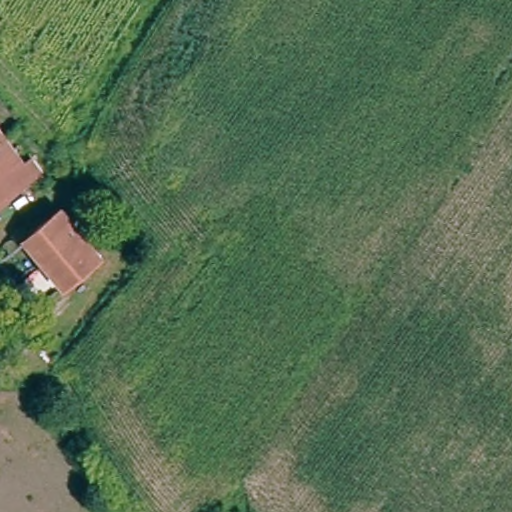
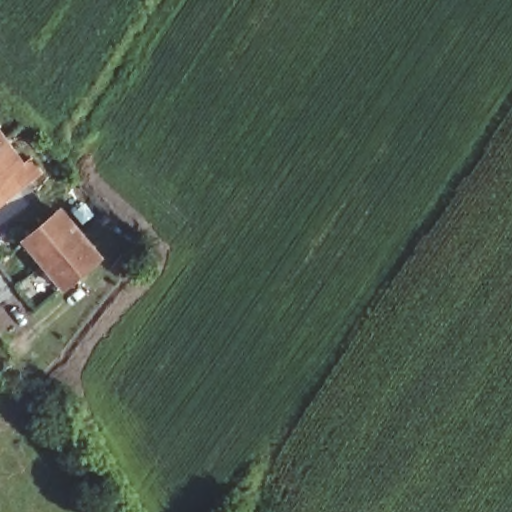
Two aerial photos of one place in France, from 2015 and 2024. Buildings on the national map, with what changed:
unchanged [(0,199),(0,136),(30,175),(0,199)]
unchanged [(96,260),(60,289),(22,242),(57,214),(96,260)]

